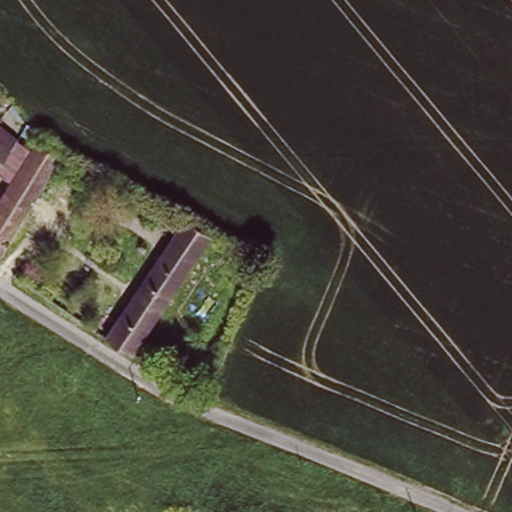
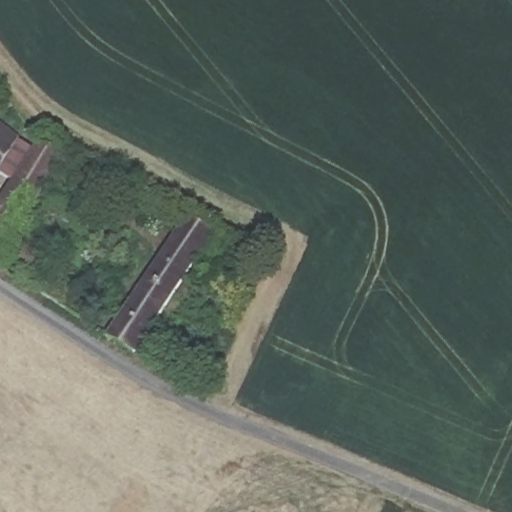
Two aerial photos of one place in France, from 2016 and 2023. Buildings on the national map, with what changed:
unchanged [(37,143),(65,160),(0,254),(0,194),(37,143)]
unchanged [(8,154),(0,166),(0,146),(8,154)]
unchanged [(112,334),(186,219),(230,244),(156,360),(112,334)]

